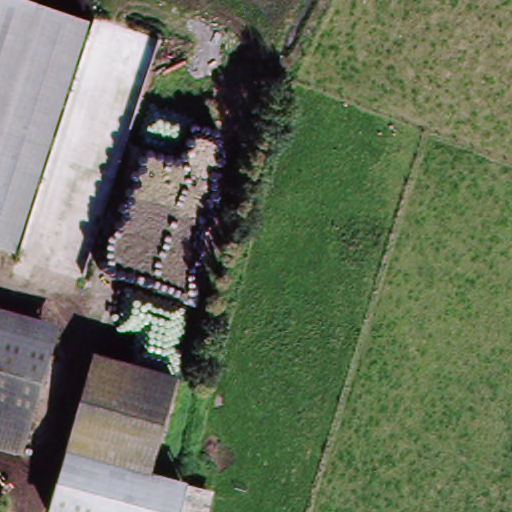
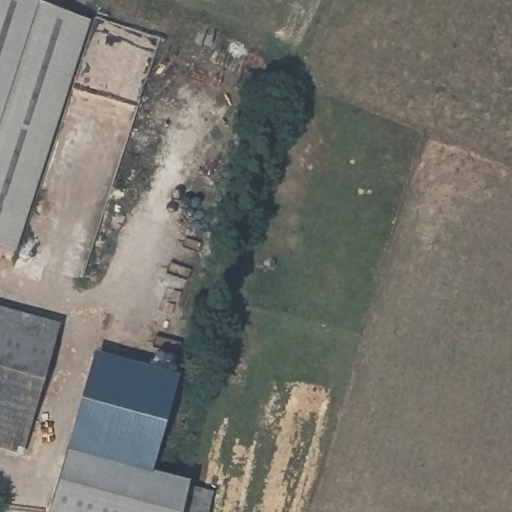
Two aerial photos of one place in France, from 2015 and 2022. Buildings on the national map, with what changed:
unchanged [(83,15),(18,249),(0,244),(0,0),(30,0),(83,15)]
unchanged [(53,345),(29,455),(0,448),(0,333),(53,345)]
unchanged [(152,472),(211,488),(206,512),(51,512),(95,356),(175,375),(152,472)]

